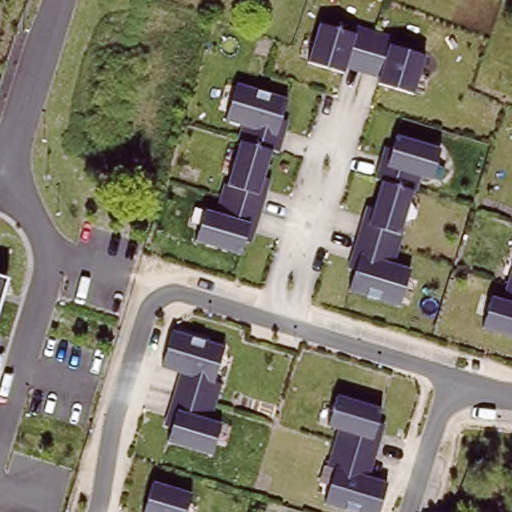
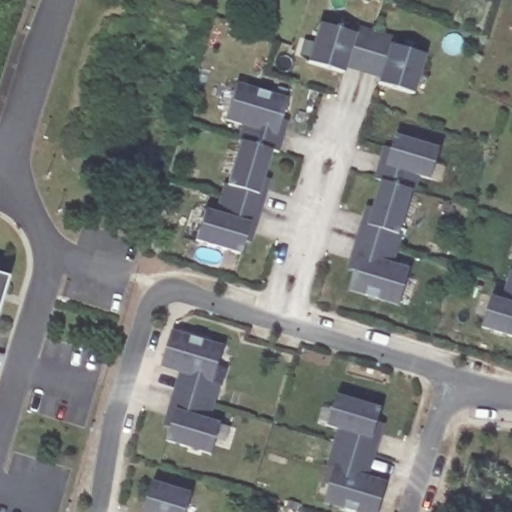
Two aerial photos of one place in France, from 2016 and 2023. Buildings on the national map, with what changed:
unchanged [(351,34),(354,23),(389,35),(388,44),(424,55),(412,95),(375,83),(378,73),(345,62),(341,73),(307,63),(318,24),(351,34)]
unchanged [(286,98),(281,117),(286,125),(278,153),(273,147),(265,176),(270,179),(253,240),(245,236),(239,254),(194,242),(203,208),(214,212),(222,180),(225,181),(240,140),(246,142),(250,129),(223,121),(235,82),(286,98)]
unchanged [(394,143),(396,133),(438,149),(430,182),(420,178),(395,264),(410,269),(400,309),(346,294),(353,269),(346,265),(365,204),(372,205),(379,180),(375,177),(385,144),(394,143)]
unchanged [(506,257),(512,237),(512,258),(506,257)]
unchanged [(481,329),(491,295),(502,300),(512,269),(512,339),(481,329)]
unchanged [(0,288),(0,275),(3,276),(0,288)]
unchanged [(224,346),(216,374),(223,380),(211,421),(220,424),(211,458),(165,444),(170,427),(162,425),(176,374),(160,369),(170,329),(224,346)]
unchanged [(382,409),(378,420),(384,425),(369,477),(387,481),(378,512),(348,512),(323,505),(328,484),(324,480),(337,429),(327,426),(335,396),(382,409)]
unchanged [(192,494),(188,508),(195,511),(195,512),(142,512),(151,482),(192,494)]

